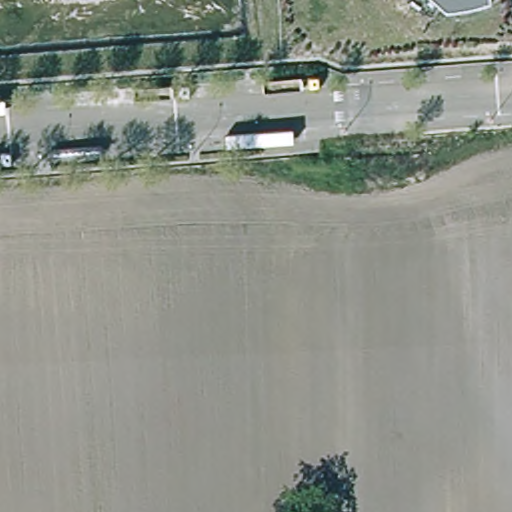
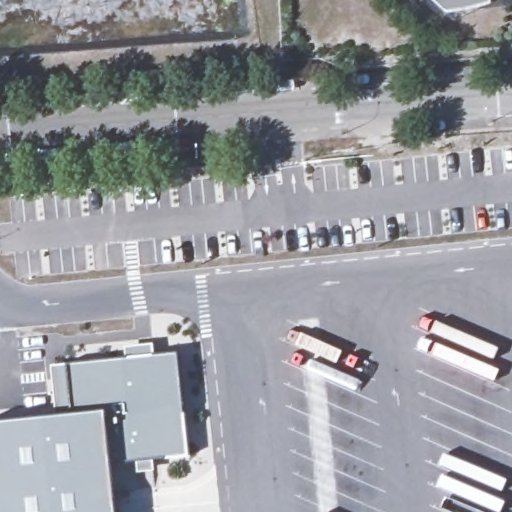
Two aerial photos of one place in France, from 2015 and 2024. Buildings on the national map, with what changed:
unchanged [(489,3),(484,5),(463,10),(446,12),(433,0),(489,0),(489,3)]
new [(117,512),(0,512),(0,421),(57,416),(51,366),(178,352),(190,456),(111,458),(117,512)]

